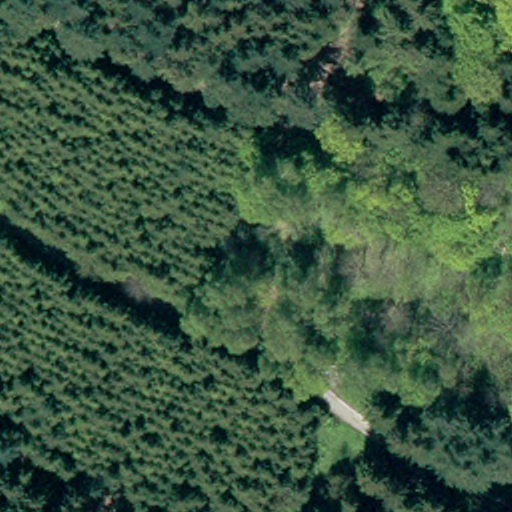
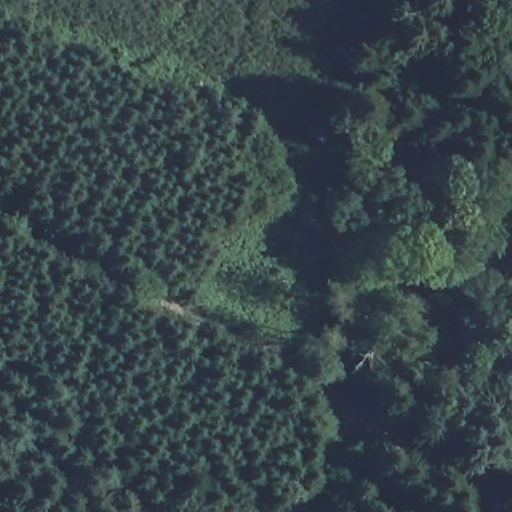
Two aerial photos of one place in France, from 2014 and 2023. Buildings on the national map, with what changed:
[]

